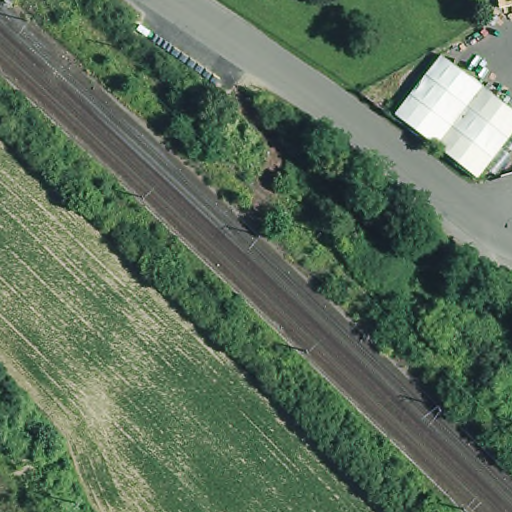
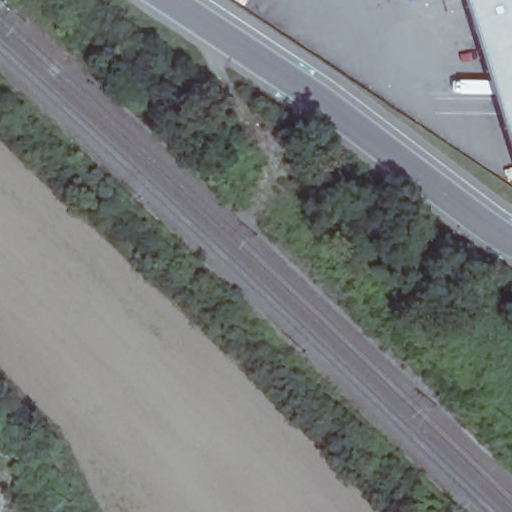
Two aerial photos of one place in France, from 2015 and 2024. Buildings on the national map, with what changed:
new [(481,0),(512,0),(512,99),(481,0)]
demolished [(475,181),(392,117),(439,57),(512,111),(512,137),(475,181)]

